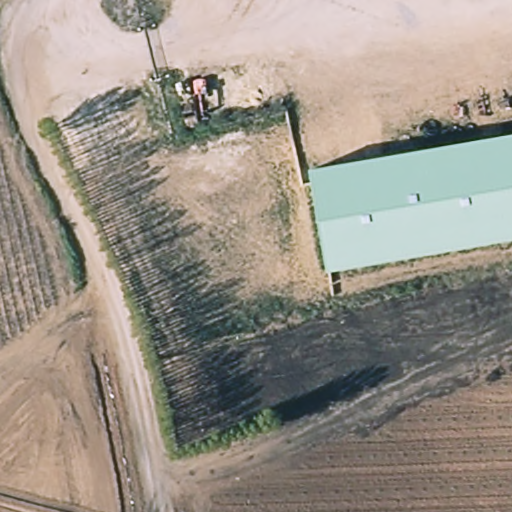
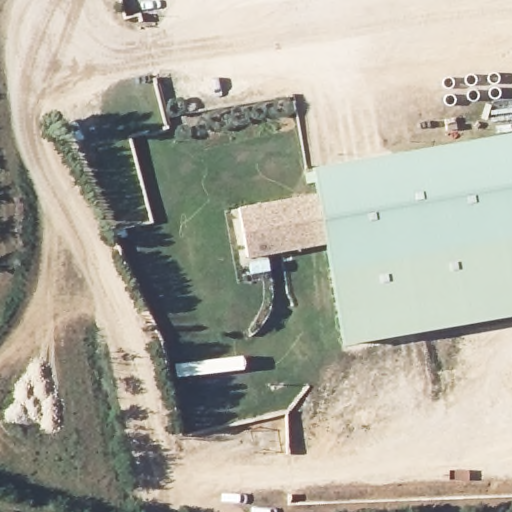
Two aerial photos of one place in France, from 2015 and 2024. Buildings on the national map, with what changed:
unchanged [(331,270),(314,170),(512,135),(512,238),(331,270)]
new [(318,194),(328,247),(246,260),(238,208),(318,194)]
new [(346,343),(331,270),(512,238),(512,316),(346,343)]

